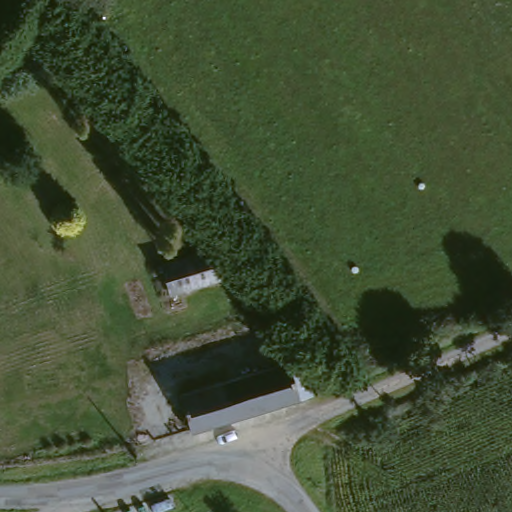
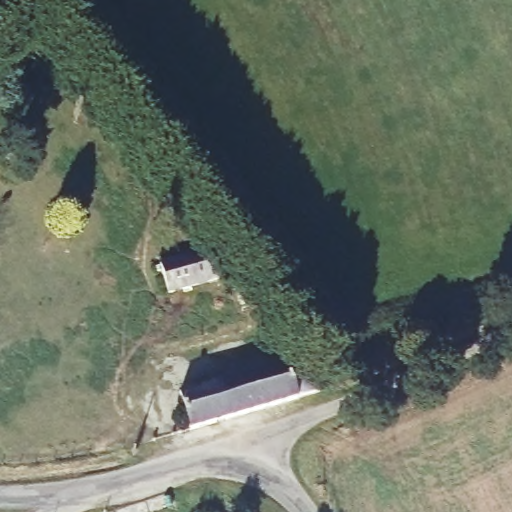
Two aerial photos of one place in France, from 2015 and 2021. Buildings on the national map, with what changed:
unchanged [(217,247),(226,277),(164,294),(158,266),(217,247)]
unchanged [(310,357),(320,392),(192,429),(182,394),(310,357)]

